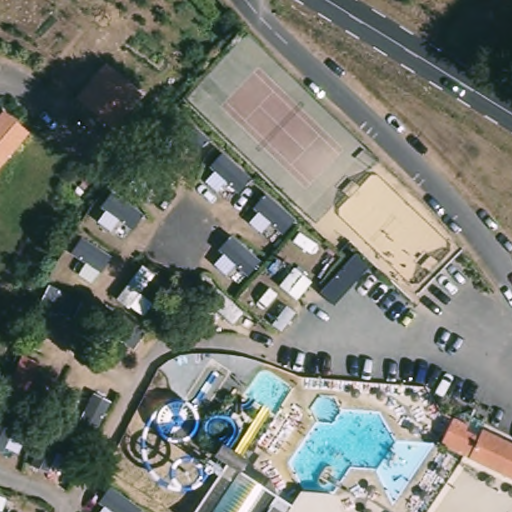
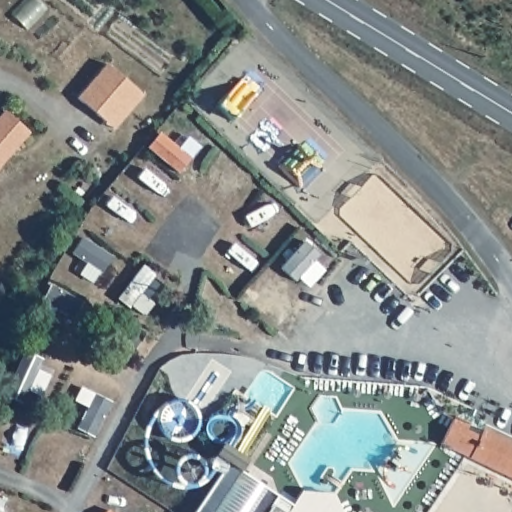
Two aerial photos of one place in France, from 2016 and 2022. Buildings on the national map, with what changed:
unchanged [(115,130),(105,122),(79,99),(109,65),(135,88),(145,96),(115,130)]
unchanged [(25,135),(0,166),(0,116),(25,135)]
unchanged [(454,418),(469,413),(472,415),(470,420),(483,427),(481,432),(512,447),(512,483),(439,448),(454,418)]
unchanged [(214,459),(222,447),(232,455),(225,465),(276,500),(269,512),(195,512),(226,467),(214,459)]

